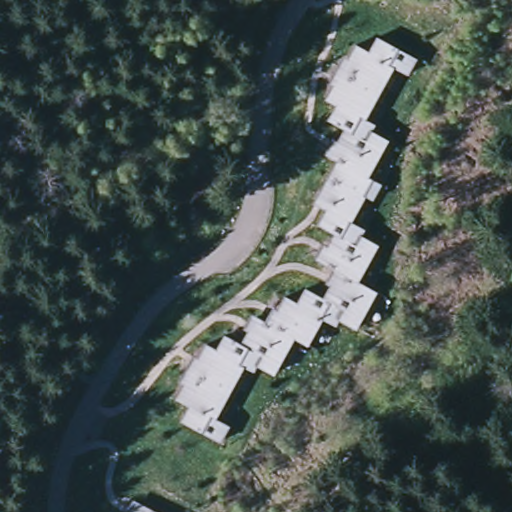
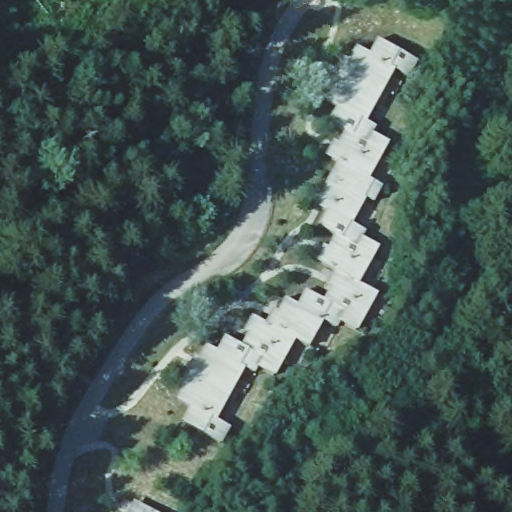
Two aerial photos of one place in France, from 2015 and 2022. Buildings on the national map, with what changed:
unchanged [(188,408),(175,400),(181,386),(176,383),(192,355),(198,359),(206,344),(216,350),(225,335),(240,347),(248,333),(241,331),(252,315),(265,322),(273,308),(277,312),(285,297),(296,305),(304,290),(323,301),(330,289),(323,286),(334,271),(315,260),(321,245),(327,248),(333,236),(316,229),(325,213),(313,205),(336,164),(323,156),(332,140),(338,143),(344,131),(328,122),(335,109),(325,102),(331,90),(326,86),(342,57),(348,60),(355,47),(368,54),(377,38),(417,62),(410,77),(391,68),(367,120),(379,126),(374,135),(388,142),(369,180),(383,186),(375,201),(366,196),(351,224),(366,232),(363,239),(378,247),(358,286),(376,294),(358,334),(323,319),(310,347),(293,338),(275,377),(256,366),(262,356),(253,352),(215,419),(230,430),(220,446),(180,423),(188,408)]
unchanged [(154,512),(125,512),(132,500),(154,512)]

